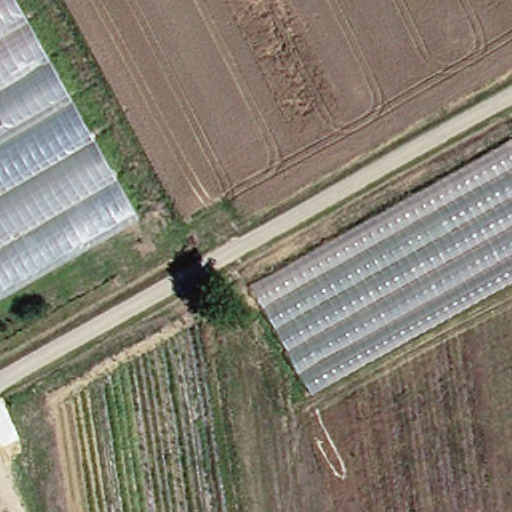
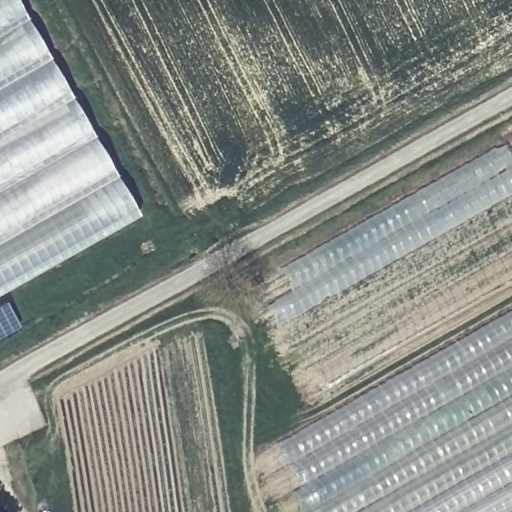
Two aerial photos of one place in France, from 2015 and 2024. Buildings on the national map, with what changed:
unchanged [(0,299),(0,0),(17,0),(143,219),(0,299)]
new [(253,286),(512,142),(512,143),(512,280),(311,393),(253,286)]
demolished [(442,189),(484,505),(447,512),(359,512),(323,250),(442,189)]
new [(18,327),(0,337),(0,305),(4,302),(18,327)]
new [(264,453),(512,312),(512,512),(298,512),(264,453)]

